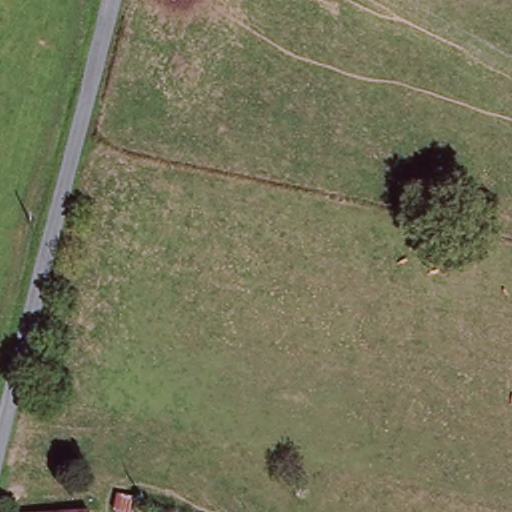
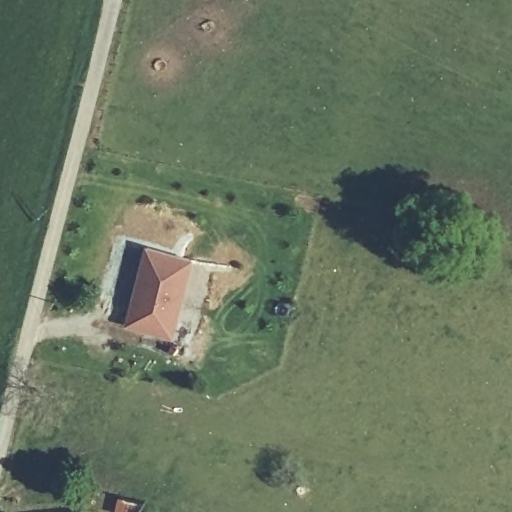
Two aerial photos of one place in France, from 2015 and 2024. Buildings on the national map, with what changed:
new [(197,257),(176,338),(124,325),(146,244),(197,257)]
unchanged [(119,496),(120,494),(137,499),(134,512),(126,512),(115,509),(119,496)]

